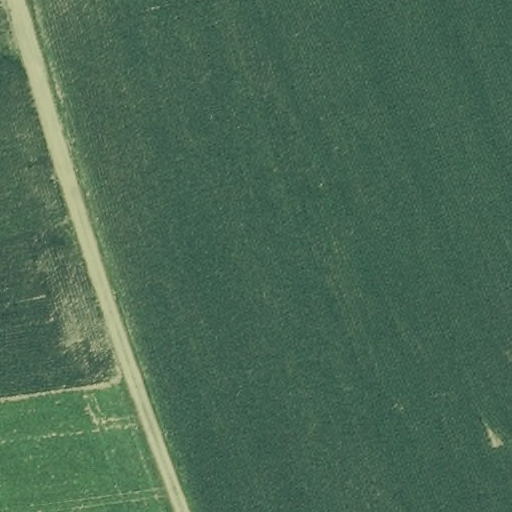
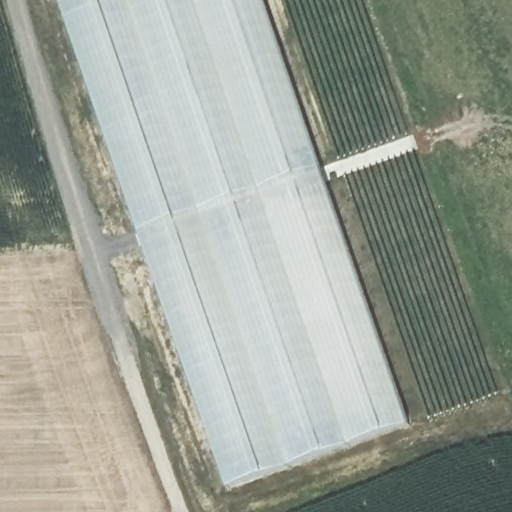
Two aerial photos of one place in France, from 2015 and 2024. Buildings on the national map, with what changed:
new [(220,495),(62,0),(265,0),(409,431),(220,495)]

